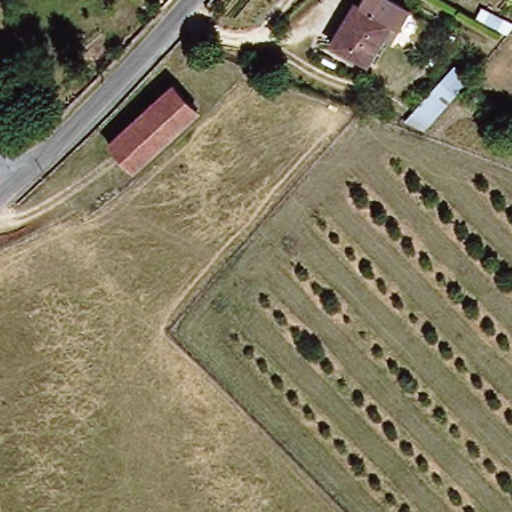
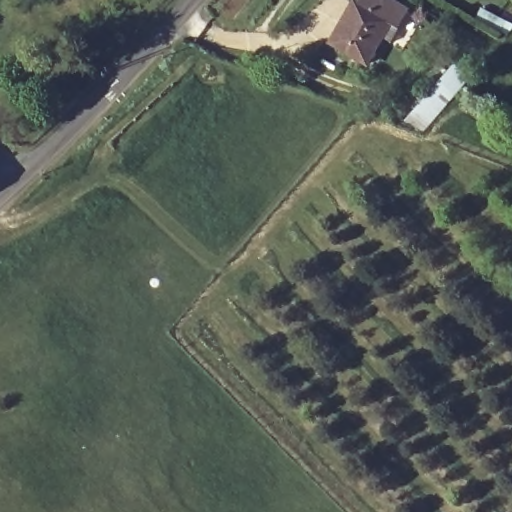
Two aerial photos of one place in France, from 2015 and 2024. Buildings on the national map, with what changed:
unchanged [(346,14),(350,16),(360,0),(375,0),(404,16),(392,35),(387,32),(364,69),(328,48),(346,14)]
unchanged [(471,81),(429,130),(413,112),(453,66),(471,81)]
demolished [(172,83),(198,110),(136,169),(110,142),(172,83)]

